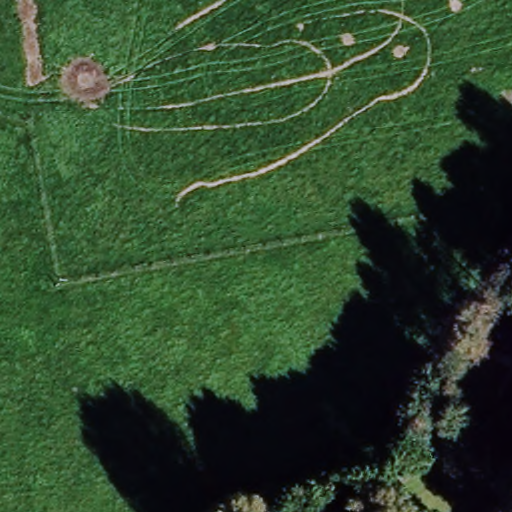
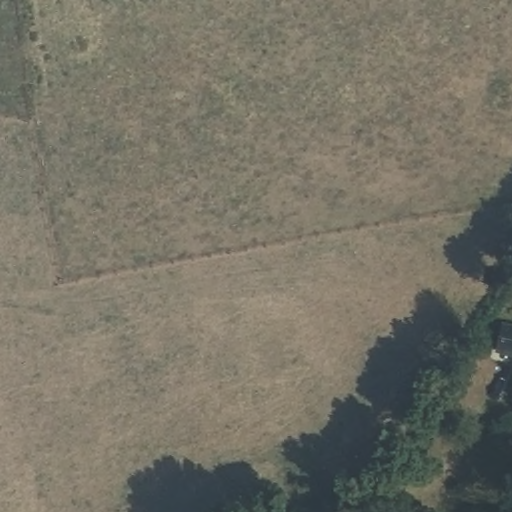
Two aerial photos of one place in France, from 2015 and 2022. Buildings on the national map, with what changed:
unchanged [(512,355),(493,350),(499,326),(512,331),(512,355)]

